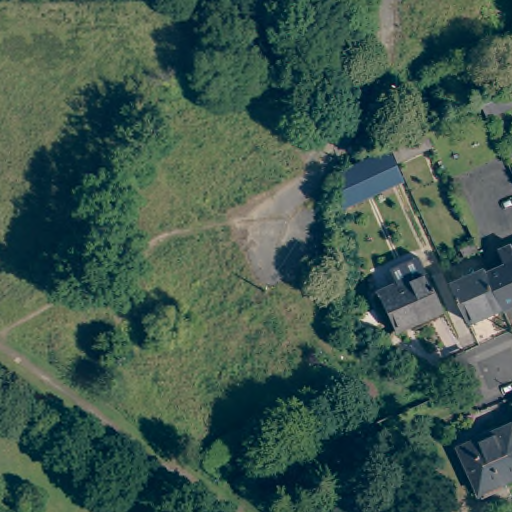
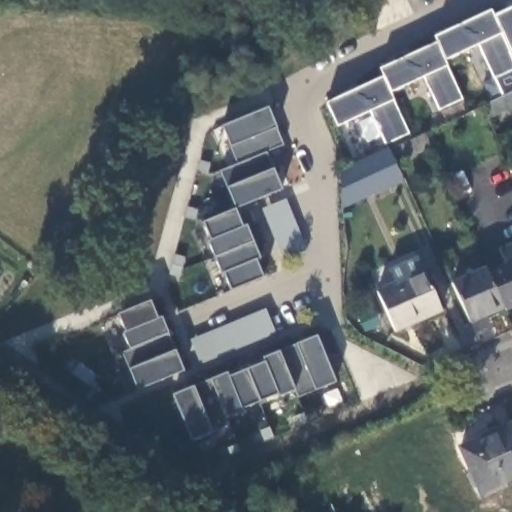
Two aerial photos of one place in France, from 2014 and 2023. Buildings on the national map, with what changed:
new [(474,46),(444,60),(447,66),(462,101),(437,111),(422,78),(390,93),(393,100),(409,134),(383,146),(367,112),(337,126),(325,104),(383,76),(379,70),(435,44),(432,37),(491,10),(495,16),(512,8),(512,70),(491,81),(474,46)]
unchanged [(483,105),(490,101),(512,92),(512,107),(488,117),(483,105)]
new [(266,154),(273,169),(281,190),(235,209),(226,187),(219,170),(236,165),(230,147),(222,127),(268,109),(276,129),(283,146),(266,154)]
unchanged [(432,145),(398,160),(392,145),(425,130),(432,145)]
unchanged [(342,167),(365,157),(389,146),(404,180),(342,207),(342,167)]
new [(282,262),(261,211),(286,199),(308,251),(282,262)]
new [(231,290),(223,273),(220,275),(207,242),(210,240),(202,221),(235,209),(242,228),(246,226),(259,258),(254,260),(263,277),(231,290)]
unchanged [(499,250),(512,244),(512,310),(507,312),(505,308),(489,272),(488,271),(505,263),(499,250)]
unchanged [(438,315),(392,335),(375,294),(390,287),(386,278),(389,272),(408,264),(414,267),(418,276),(421,275),(438,315)]
unchanged [(453,285),(487,269),(488,271),(489,272),(505,308),(470,323),(453,285)]
new [(136,391),(128,368),(119,352),(127,349),(120,333),(125,331),(118,313),(150,301),(157,319),(163,317),(184,371),(136,391)]
new [(199,366),(189,341),(266,309),(275,333),(199,366)]
new [(314,391),(296,399),(293,393),(278,398),(277,395),(242,409),(243,412),(226,419),(229,427),(210,433),(191,441),(171,395),(228,373),(229,376),(264,362),(262,357),(316,335),(335,381),(314,391)]
unchanged [(512,425),(512,479),(482,492),(462,447),(512,425)]
unchanged [(322,512),(321,509),(379,484),(392,512),(322,512)]

